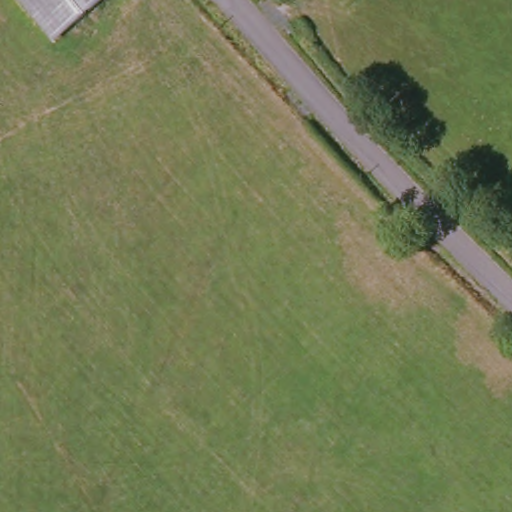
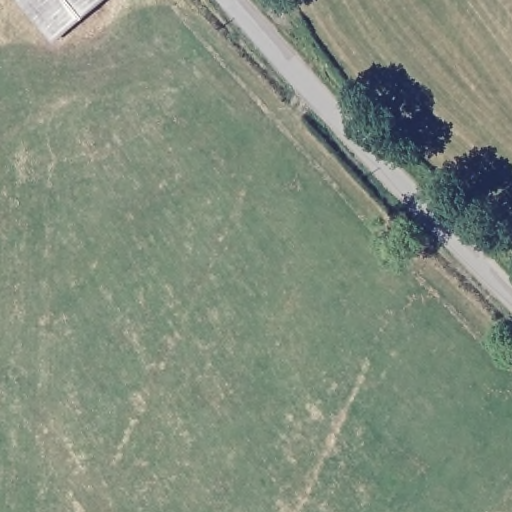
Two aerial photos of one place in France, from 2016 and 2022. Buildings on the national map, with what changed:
unchanged [(23,0),(118,0),(62,45),(23,0)]

